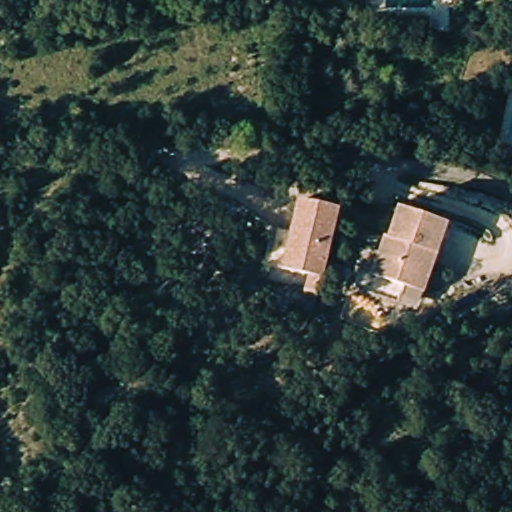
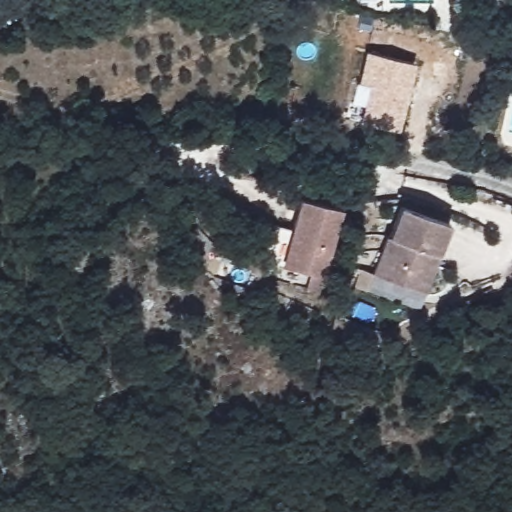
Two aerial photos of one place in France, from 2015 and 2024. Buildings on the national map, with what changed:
new [(415,61),(398,132),(359,122),(368,83),(358,81),(365,50),(415,61)]
unchanged [(340,202),(326,275),(287,267),(301,195),(340,202)]
unchanged [(444,219),(436,268),(426,267),(423,290),(378,281),(393,210),(444,219)]

